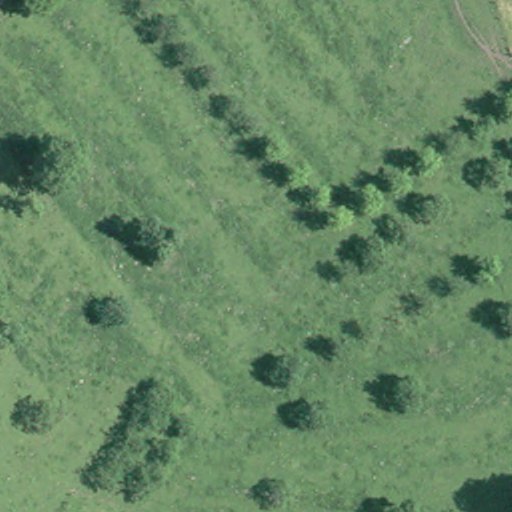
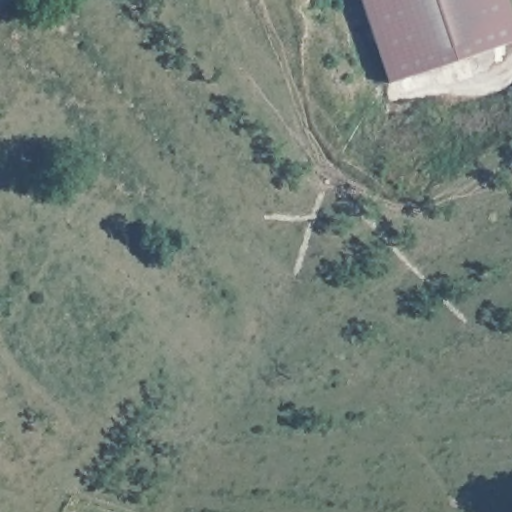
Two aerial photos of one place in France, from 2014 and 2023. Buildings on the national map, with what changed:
new [(512,14),(512,41),(389,83),(361,0),(507,0),(512,14)]

